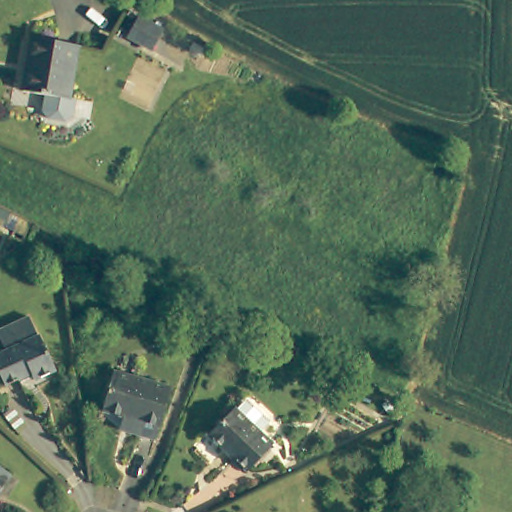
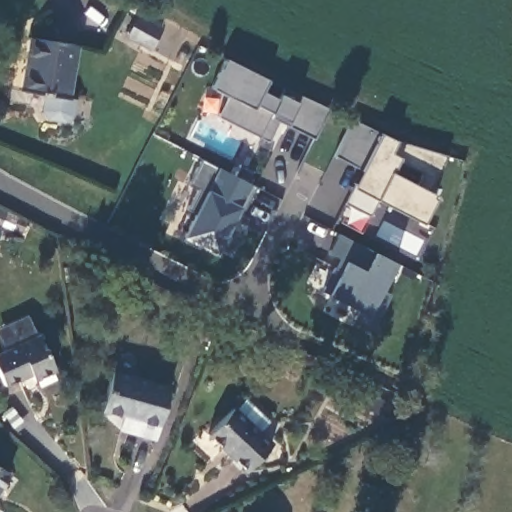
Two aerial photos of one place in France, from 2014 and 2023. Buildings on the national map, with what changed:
unchanged [(138,16),(161,29),(150,49),(127,36),(138,16)]
unchanged [(87,46),(78,99),(31,92),(40,38),(87,46)]
new [(313,141),(286,127),(278,121),(267,141),(219,117),(230,98),(212,87),(226,59),(268,80),(262,91),(278,99),(281,94),(284,87),(331,107),(313,141)]
new [(429,192),(436,195),(421,222),(378,200),(368,216),(343,203),(352,186),(362,170),(334,156),(354,120),(381,132),(397,140),(447,154),(429,192)]
new [(238,221),(247,226),(230,256),(218,248),(215,253),(183,237),(194,215),(187,210),(197,190),(190,186),(203,161),(258,187),(238,221)]
unchanged [(0,204),(10,209),(6,222),(0,221),(0,204)]
new [(337,233),(375,252),(395,263),(382,290),(392,296),(374,330),(354,320),(359,311),(328,295),(345,261),(329,253),(337,233)]
unchanged [(52,337),(54,336),(69,370),(48,380),(44,373),(19,385),(6,358),(19,352),(11,333),(24,327),(43,318),(52,337)]
unchanged [(139,417),(117,410),(128,372),(184,387),(169,438),(151,433),(136,429),(139,417)]
unchanged [(223,434),(248,408),(287,445),(262,471),(223,434)]
unchanged [(0,504),(0,454),(24,470),(0,504)]

